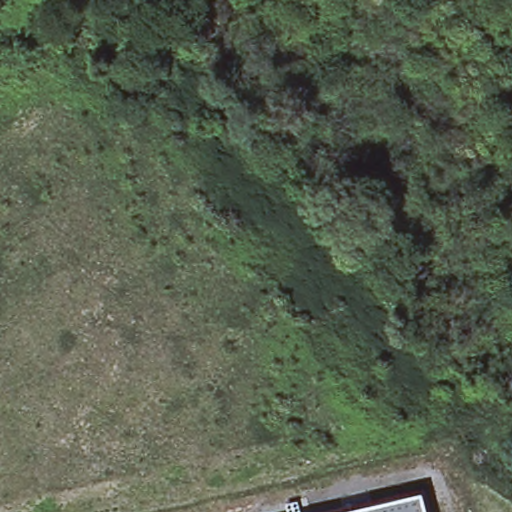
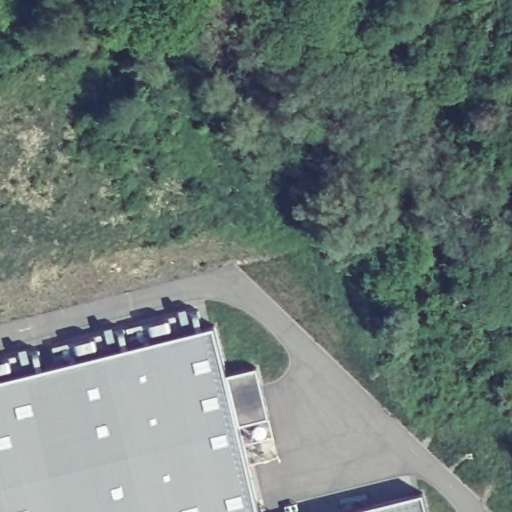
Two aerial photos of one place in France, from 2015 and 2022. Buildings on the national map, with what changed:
new [(214,327),(226,374),(256,368),(269,419),(266,420),(277,459),(247,464),(259,512),(0,512),(0,361),(19,357),(18,353),(26,351),(27,357),(37,354),(42,371),(58,367),(52,349),(104,336),(102,330),(112,329),(112,333),(180,317),(178,312),(185,311),(187,317),(197,314),(201,331),(214,327)]
unchanged [(342,512),(430,489),(435,512),(342,512)]

